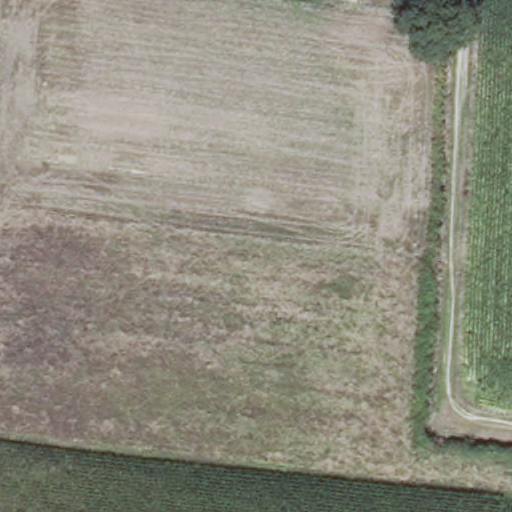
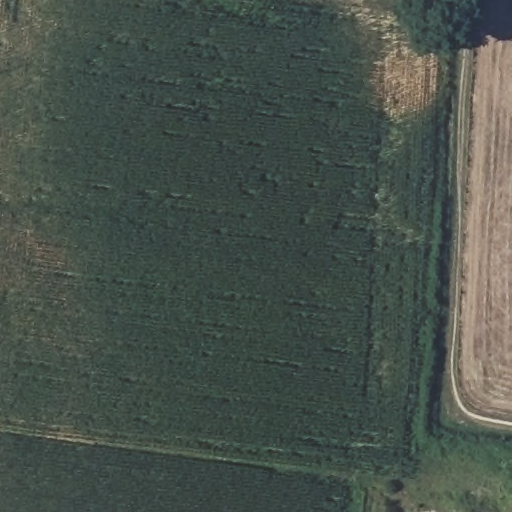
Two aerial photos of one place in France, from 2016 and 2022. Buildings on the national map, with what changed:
[]

